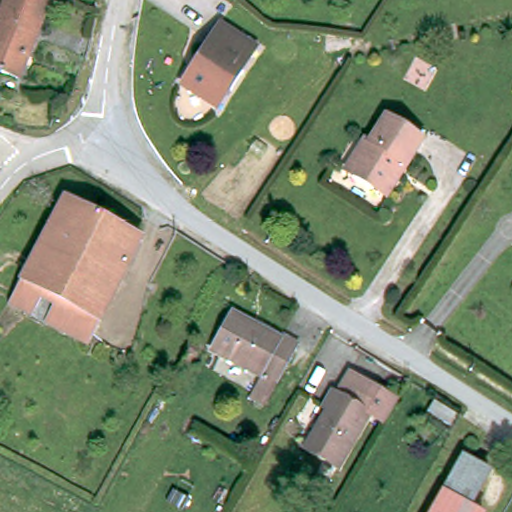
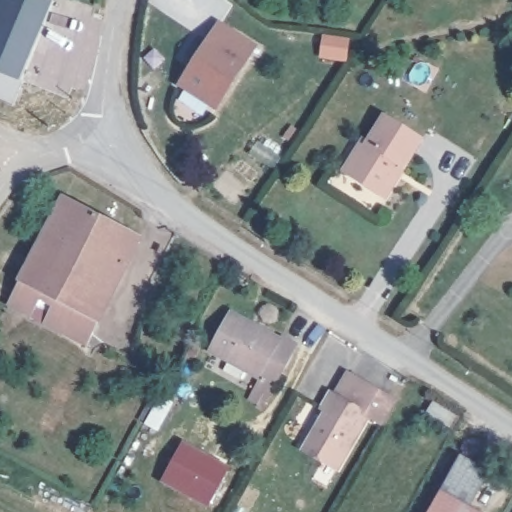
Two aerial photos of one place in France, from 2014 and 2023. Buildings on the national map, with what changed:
unchanged [(17,81),(0,72),(0,0),(33,0),(51,7),(17,81)]
unchanged [(183,84),(221,25),(260,50),(222,109),(183,84)]
unchanged [(382,192),(349,173),(370,140),(374,142),(390,117),(425,140),(409,166),(389,197),(382,192)]
unchanged [(141,238),(88,346),(10,304),(65,199),(141,238)]
unchanged [(272,409),(258,402),(268,382),(217,355),(236,321),(238,318),(263,332),(284,343),(287,342),(304,351),(272,409)]
unchanged [(345,475),(312,456),(326,431),(335,416),(331,413),(340,398),(344,401),(356,379),(404,407),(391,429),(376,421),(374,423),(345,475)]
unchanged [(426,411),(450,426),(443,437),(419,423),(426,411)]
new [(184,445),(228,470),(209,505),(164,481),(184,445)]
unchanged [(460,458),(486,473),(467,508),(474,512),(429,512),(460,458)]

